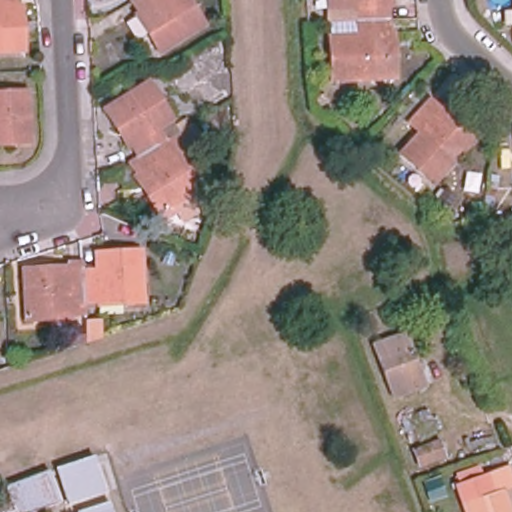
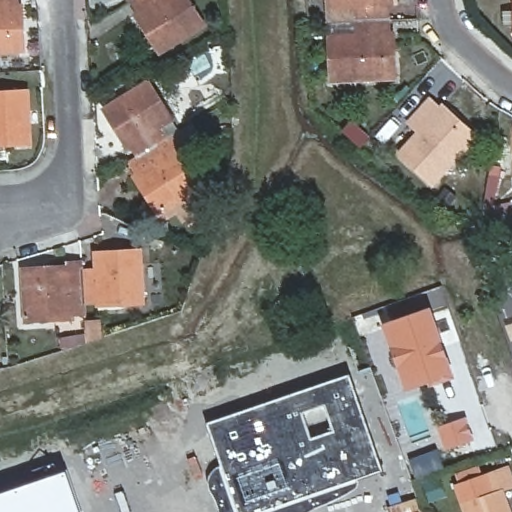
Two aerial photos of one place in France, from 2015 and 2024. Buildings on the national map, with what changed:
unchanged [(26,11),(28,57),(0,58),(0,0),(22,0),(22,11),(26,11)]
unchanged [(203,26),(159,54),(134,15),(138,12),(131,1),(133,0),(188,0),(203,26)]
unchanged [(332,18),(332,0),(396,0),(396,1),(392,2),(393,16),(336,18),(332,18)]
unchanged [(397,30),(398,52),(399,74),(335,77),(333,32),(336,32),(336,18),(393,16),(393,30),(397,30)]
unchanged [(508,32),(507,17),(512,17),(512,31),(508,32)]
unchanged [(174,132),(162,140),(133,157),(126,146),(122,147),(98,110),(142,82),(174,132)]
unchanged [(35,145),(12,146),(0,146),(0,93),(32,92),(35,145)]
unchanged [(432,186),(399,154),(418,132),(408,123),(429,100),(439,109),(442,106),(476,137),(432,186)]
unchanged [(177,223),(166,206),(152,215),(128,177),(131,175),(124,163),(133,157),(162,140),(174,132),(185,125),(193,138),(174,150),(197,187),(183,196),(193,212),(177,223)]
unchanged [(148,303),(101,306),(101,302),(88,302),(87,271),(100,271),(99,253),(145,251),(148,303)]
unchanged [(87,271),(88,302),(89,313),(75,315),(75,319),(29,321),(27,269),(73,267),(73,263),(86,262),(87,271)]
new [(391,325),(427,312),(449,376),(431,381),(430,378),(412,385),(391,325)]
unchanged [(105,338),(91,343),(90,322),(104,322),(105,338)]
demolished [(424,386),(393,397),(374,345),(404,334),(424,386)]
new [(350,375),(382,471),(358,480),(358,484),(355,490),(326,505),(314,510),(311,512),(221,512),(219,507),(216,497),(211,490),(208,483),(209,477),(214,470),(221,466),(206,422),(350,375)]
demolished [(433,431),(410,440),(403,421),(426,412),(433,431)]
new [(464,420),(470,440),(447,447),(440,428),(464,420)]
demolished [(442,457),(420,465),(414,451),(436,442),(442,457)]
demolished [(104,492),(67,505),(56,469),(92,457),(104,492)]
new [(80,512),(0,512),(0,493),(67,471),(80,512)]
demolished [(31,512),(15,512),(11,503),(6,487),(47,472),(58,502),(31,512)]
unchanged [(501,502),(505,512),(461,512),(456,497),(459,495),(456,486),(477,477),(480,487),(484,486),(491,505),(501,502)]
demolished [(78,512),(107,503),(110,512),(78,512)]

